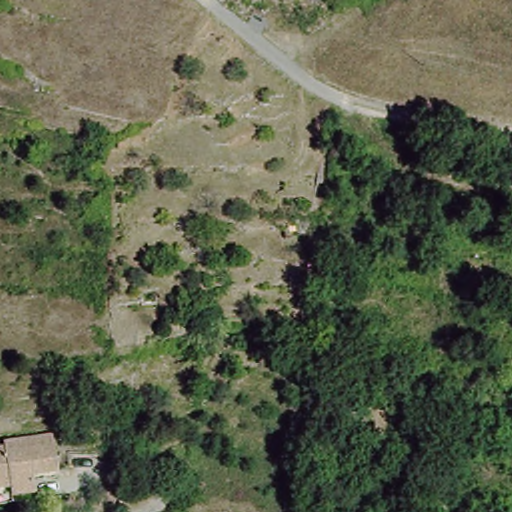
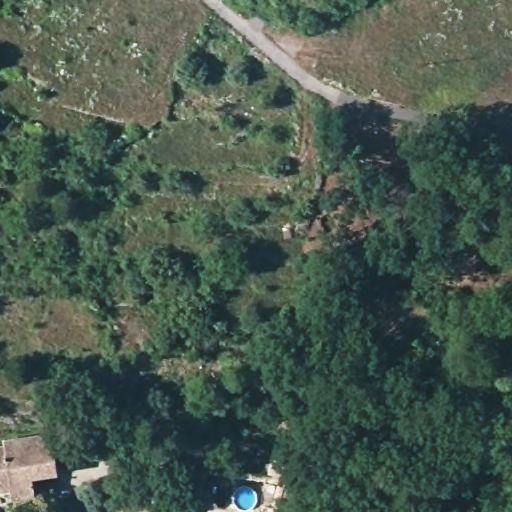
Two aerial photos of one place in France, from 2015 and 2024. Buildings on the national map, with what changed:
unchanged [(10,441),(9,435),(54,426),(63,460),(37,465),(42,486),(21,489),(0,493),(0,443),(10,441)]

